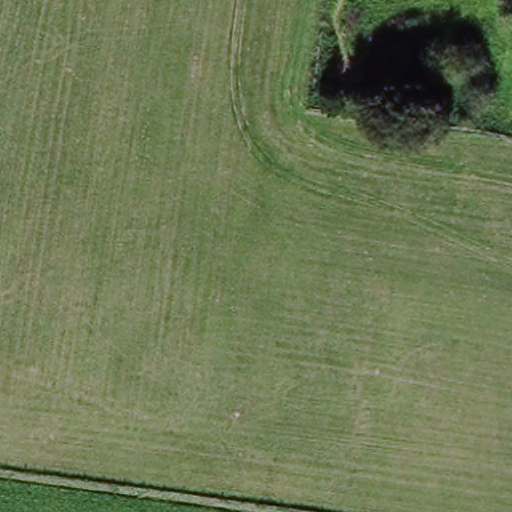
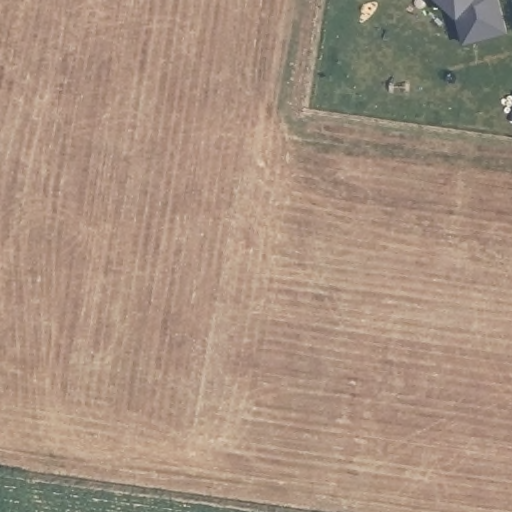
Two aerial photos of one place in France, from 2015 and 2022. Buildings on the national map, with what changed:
new [(463,13),(449,0),(503,0),(511,28),(476,38),(470,39),(467,26),(463,13)]

